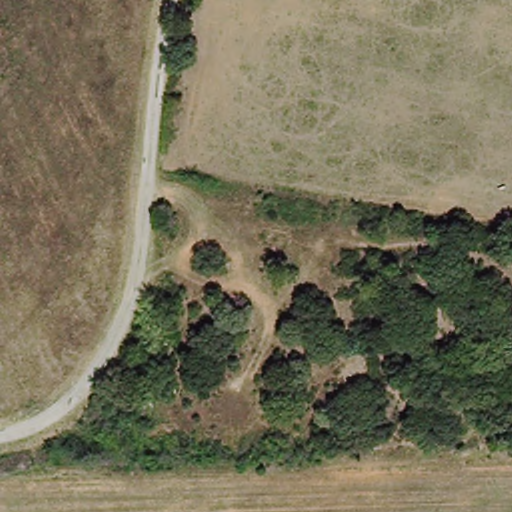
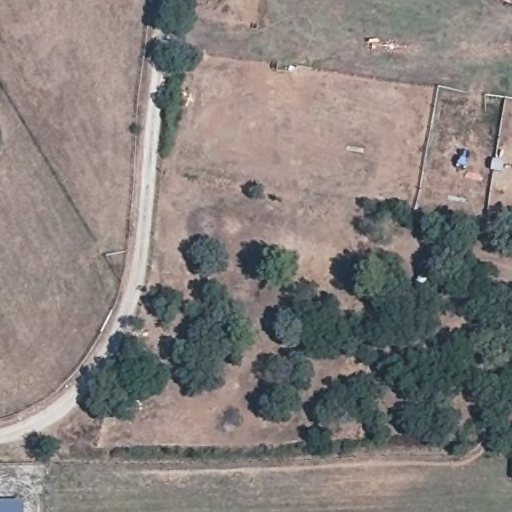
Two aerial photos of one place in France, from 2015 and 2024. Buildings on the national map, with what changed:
new [(23,512),(0,512),(0,498),(23,498),(23,512)]

